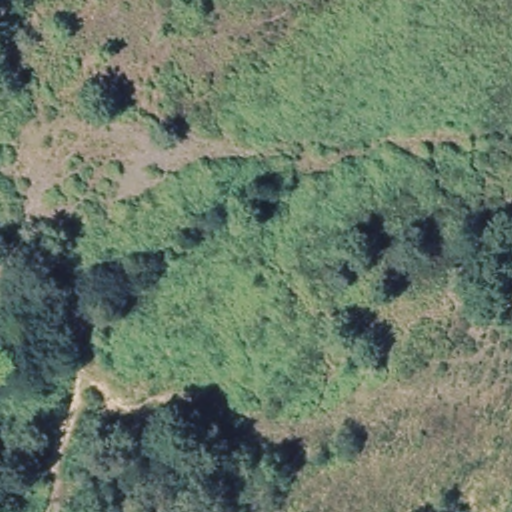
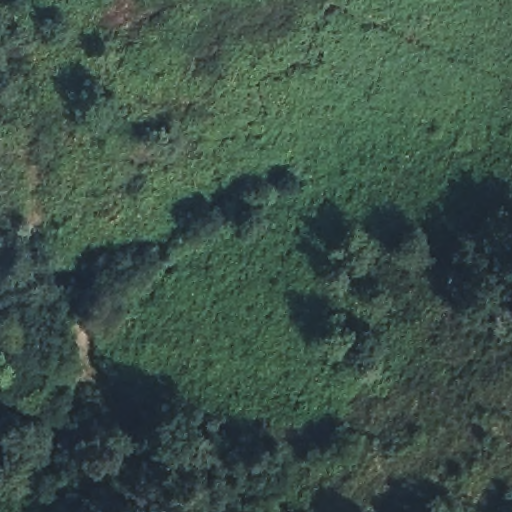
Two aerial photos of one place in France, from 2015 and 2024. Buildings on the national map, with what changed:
[]

